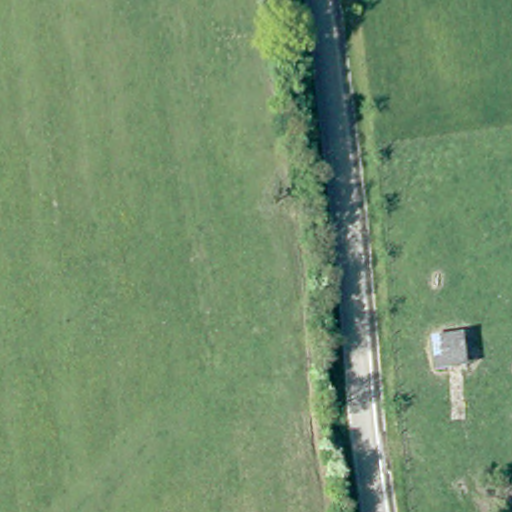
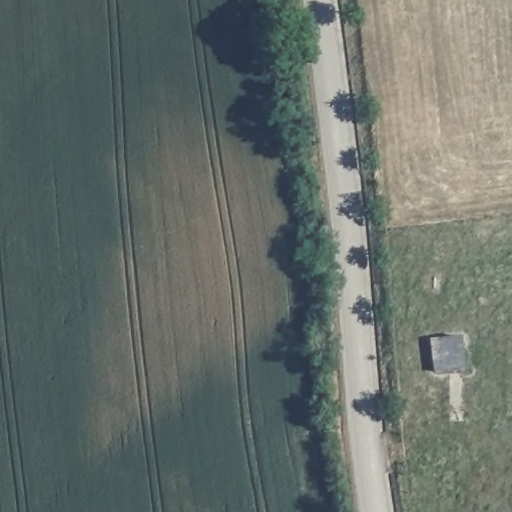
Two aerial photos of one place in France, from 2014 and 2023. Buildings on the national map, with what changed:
unchanged [(437,368),(435,337),(466,334),(468,365),(437,368)]

